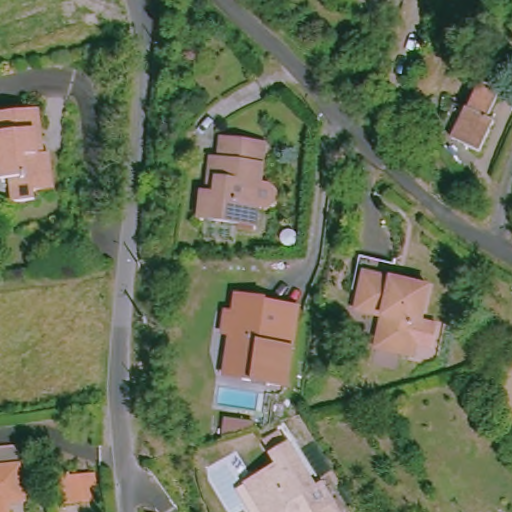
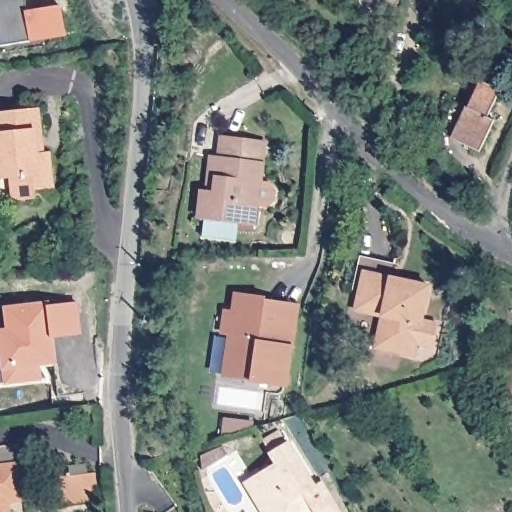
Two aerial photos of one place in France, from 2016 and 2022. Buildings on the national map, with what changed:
new [(0,16),(0,0),(31,0),(32,5),(64,0),(69,30),(4,41),(0,16)]
unchanged [(474,81),(493,90),(480,118),(488,122),(475,152),(447,139),(474,81)]
unchanged [(34,200),(12,202),(10,180),(1,181),(0,181),(0,114),(34,107),(38,128),(31,129),(36,155),(49,152),(52,185),(54,198),(34,200)]
unchanged [(267,142),(258,183),(269,186),(272,192),(270,202),(264,207),(254,205),(252,221),(195,213),(199,191),(212,193),(222,135),(267,142)]
unchanged [(377,315),(350,309),(352,297),(357,271),(422,283),(415,317),(432,321),(428,343),(411,340),(409,353),(379,347),(372,345),(377,315)]
unchanged [(233,347),(236,328),(228,327),(231,306),(239,307),(242,288),(262,291),(260,300),(268,301),(268,299),(302,304),(291,381),(272,378),(273,373),(237,368),(230,367),(233,347)]
new [(83,330),(54,333),(57,358),(40,360),(42,375),(21,377),(19,362),(7,364),(2,327),(11,326),(9,310),(14,304),(50,299),(50,301),(79,298),(83,330)]
unchanged [(275,465),(265,444),(280,434),(315,488),(322,484),(338,512),(261,512),(258,485),(275,465)]
unchanged [(17,444),(20,464),(0,467),(0,446),(17,444)]
unchanged [(23,501),(5,503),(6,512),(0,512),(0,469),(20,467),(23,501)]
unchanged [(95,468),(97,484),(62,489),(60,472),(95,468)]

